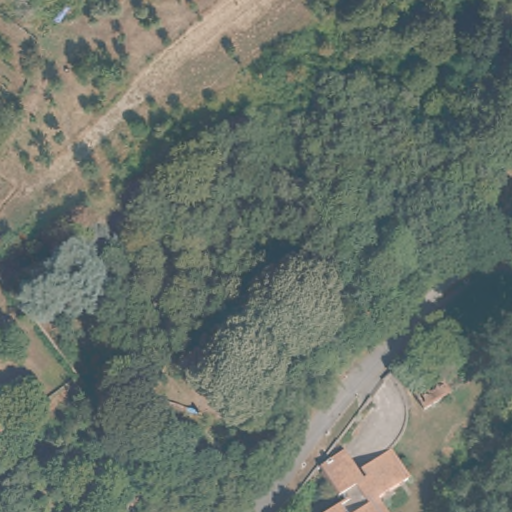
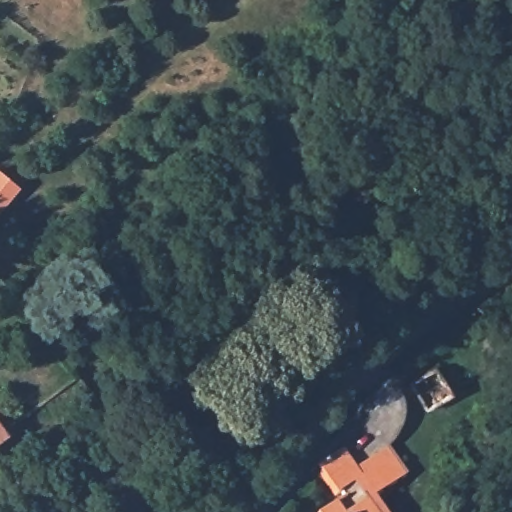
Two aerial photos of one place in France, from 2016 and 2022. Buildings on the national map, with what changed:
new [(0,209),(0,174),(17,188),(0,209)]
unchanged [(437,354),(453,379),(411,406),(395,380),(437,354)]
unchanged [(0,430),(0,424),(2,427),(0,430)]
unchanged [(319,464),(346,448),(358,465),(392,445),(412,474),(382,496),(391,512),(322,512),(344,496),(319,464)]

